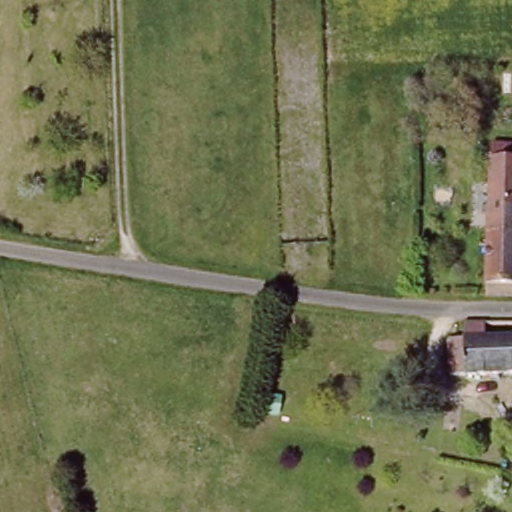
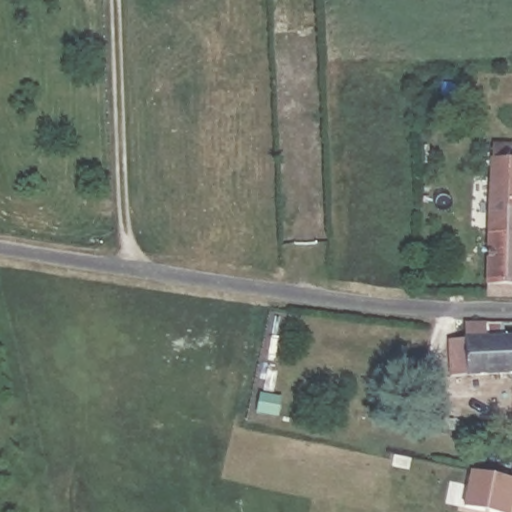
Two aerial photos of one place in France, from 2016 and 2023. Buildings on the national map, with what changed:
unchanged [(503,280),(490,279),(492,163),(487,162),(486,143),(498,144),(498,137),(512,138),(512,292),(503,292),(503,280)]
unchanged [(465,327),(482,327),(489,335),(490,337),(465,337),(463,333),(465,327)]
unchanged [(448,360),(448,348),(466,347),(512,346),(512,377),(448,380),(448,360)]
new [(462,505),(470,470),(512,478),(512,500),(510,512),(494,512),(462,505)]

